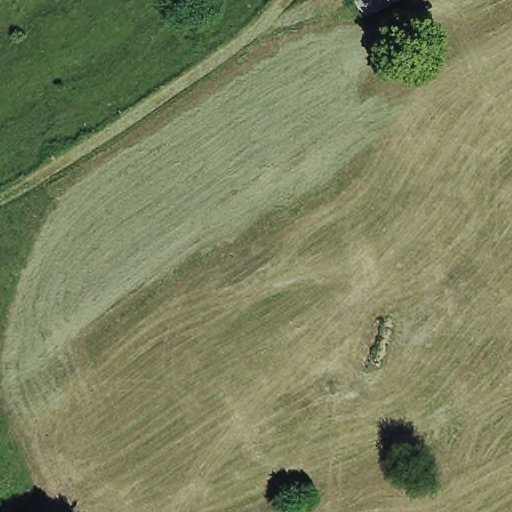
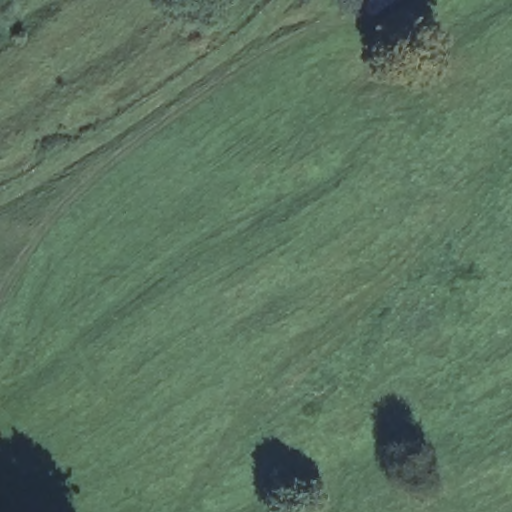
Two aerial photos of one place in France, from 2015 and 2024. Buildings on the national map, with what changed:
unchanged [(363,0),(409,0),(375,19),(363,0)]

